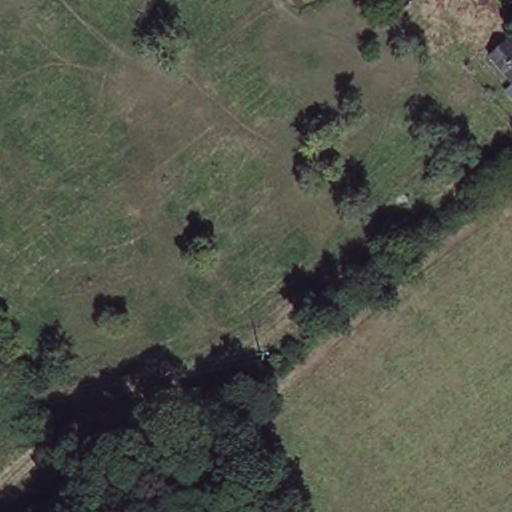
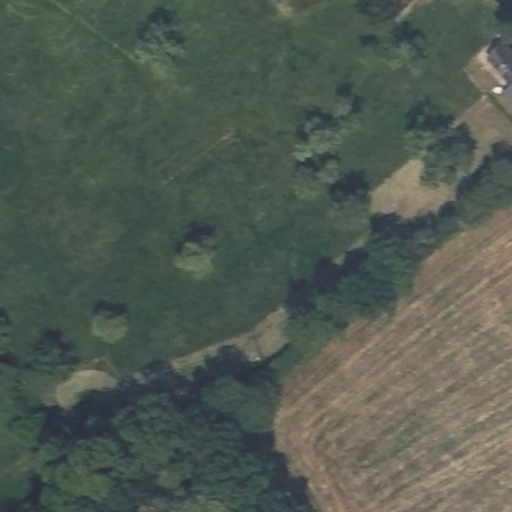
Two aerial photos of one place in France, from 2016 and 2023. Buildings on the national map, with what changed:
unchanged [(510,42),(512,44),(512,84),(490,59),(510,42)]
unchanged [(512,87),(512,98),(506,92),(512,87)]

